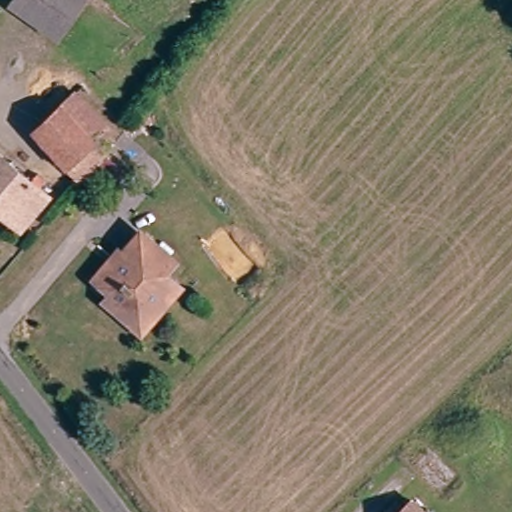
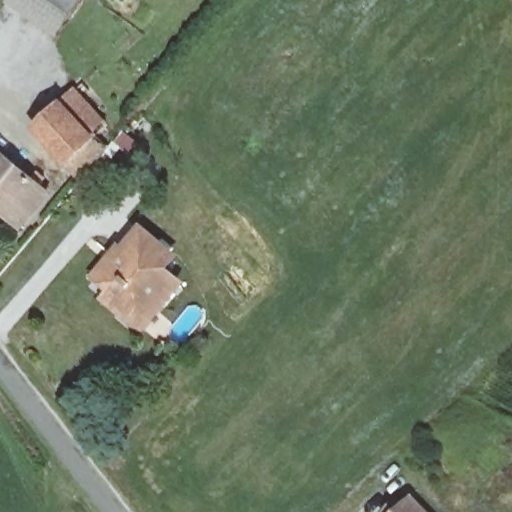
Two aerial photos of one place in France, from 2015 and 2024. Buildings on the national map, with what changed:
unchanged [(57,39),(6,5),(10,0),(82,0),(57,39)]
unchanged [(58,100),(74,84),(109,117),(95,133),(58,100)]
unchanged [(69,160),(34,125),(58,100),(95,133),(69,160)]
unchanged [(0,209),(0,151),(49,194),(20,227),(0,209)]
unchanged [(129,324),(106,303),(110,295),(93,280),(106,265),(114,272),(123,259),(117,254),(137,234),(170,263),(164,272),(174,282),(165,295),(169,301),(164,307),(140,333),(129,324)]
unchanged [(430,512),(395,512),(413,494),(430,512)]

